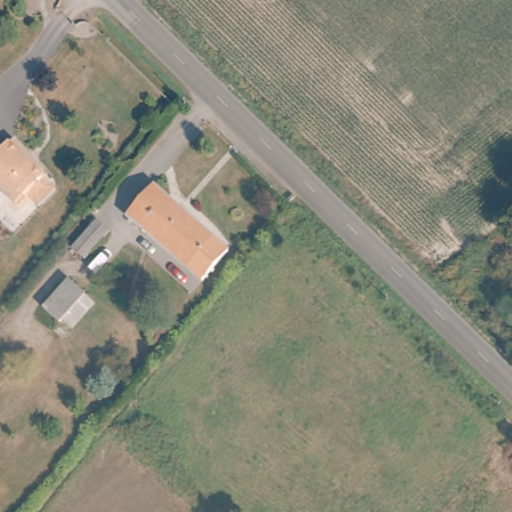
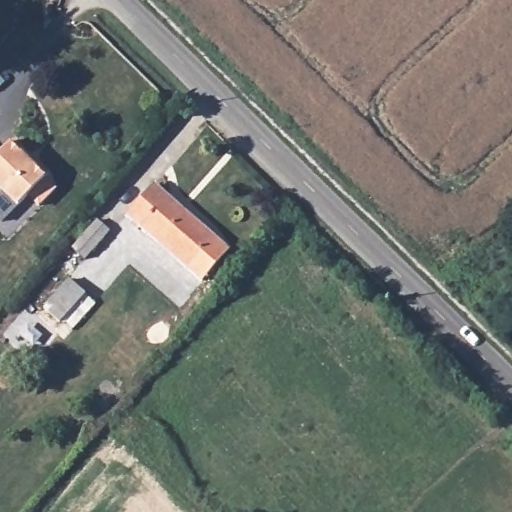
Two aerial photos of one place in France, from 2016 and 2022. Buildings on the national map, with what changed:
unchanged [(10,141),(43,172),(40,176),(53,189),(37,205),(24,192),(12,203),(0,191),(0,150),(10,141)]
unchanged [(229,250),(226,253),(201,282),(135,221),(163,189),(229,250)]
unchanged [(100,212),(114,222),(97,245),(83,234),(100,212)]
unchanged [(39,317),(67,282),(92,304),(63,336),(39,317)]

